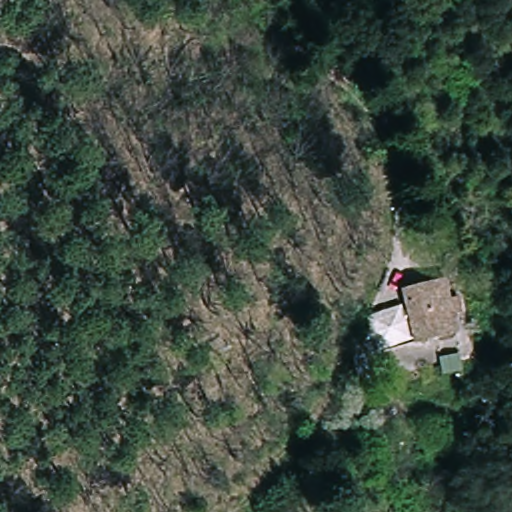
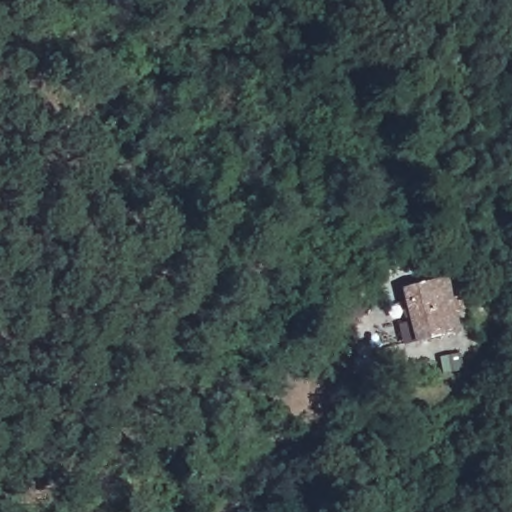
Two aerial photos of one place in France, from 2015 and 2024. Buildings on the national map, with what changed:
unchanged [(444,333),(418,336),(406,282),(442,275),(451,313),(455,330),(444,333)]

